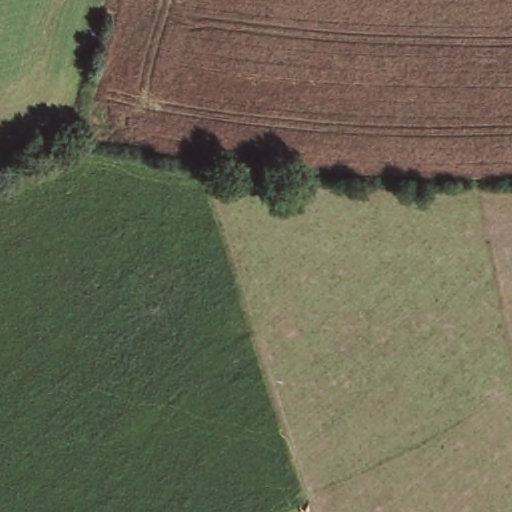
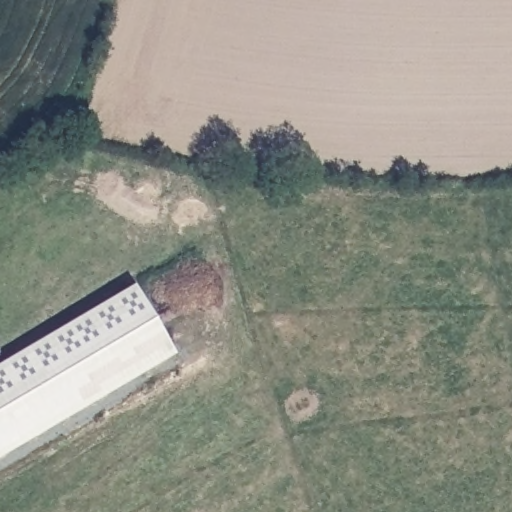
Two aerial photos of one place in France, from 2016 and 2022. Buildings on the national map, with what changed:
new [(0,458),(0,363),(133,284),(174,356),(0,458)]

